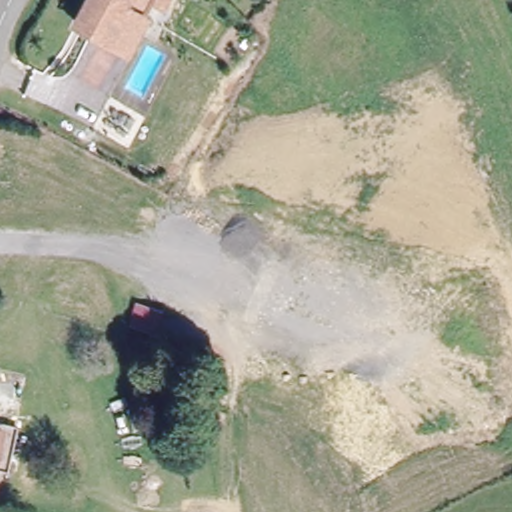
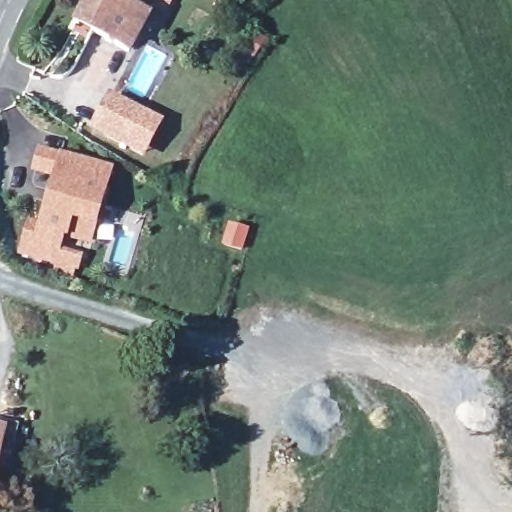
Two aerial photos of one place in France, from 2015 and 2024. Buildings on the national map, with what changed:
unchanged [(84,12),(91,0),(159,0),(154,9),(142,29),(128,54),(109,43),(99,38),(76,25),(80,19),(84,12)]
new [(129,147),(96,129),(111,98),(144,116),(129,147)]
new [(113,168),(97,227),(92,245),(67,238),(37,229),(53,177),(32,171),(40,146),(113,168)]
unchanged [(11,431),(0,471),(0,429),(11,431)]

